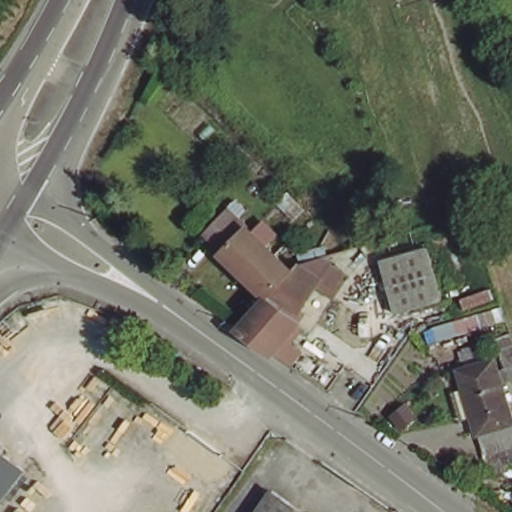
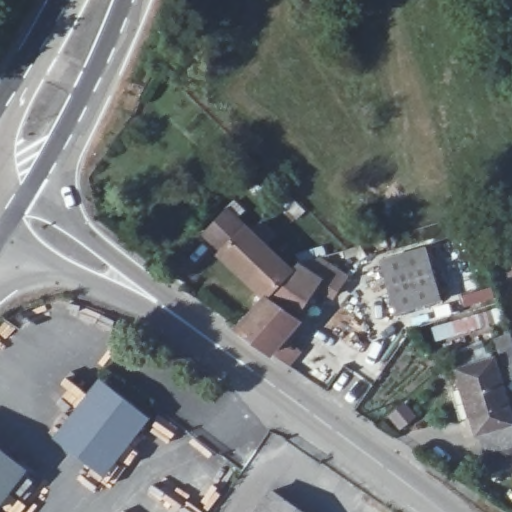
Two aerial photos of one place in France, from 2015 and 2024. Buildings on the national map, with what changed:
unchanged [(273,293),(201,236),(222,210),(250,232),(262,218),(276,229),(263,243),(294,266),(280,284),(273,293)]
unchanged [(449,290),(404,310),(384,269),(383,266),(389,264),(429,245),(449,290)]
unchanged [(310,260),(329,273),(304,301),(280,284),(294,266),(310,260)]
unchanged [(246,328),(271,295),(302,321),(280,353),(246,328)]
unchanged [(466,417),(458,395),(467,392),(461,370),(502,360),(512,398),(512,444),(493,449),(488,430),(480,431),(465,436),(460,420),(466,417)]
new [(107,477),(54,437),(88,392),(85,390),(103,366),(150,400),(140,411),(148,417),(107,477)]
unchanged [(35,462),(0,507),(0,436),(35,462)]
unchanged [(311,512),(255,512),(273,485),(311,512)]

